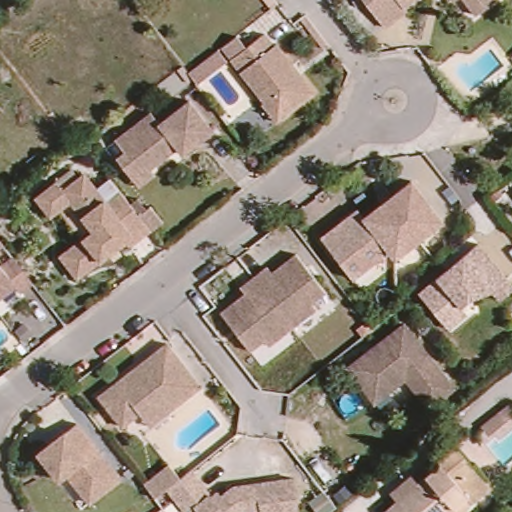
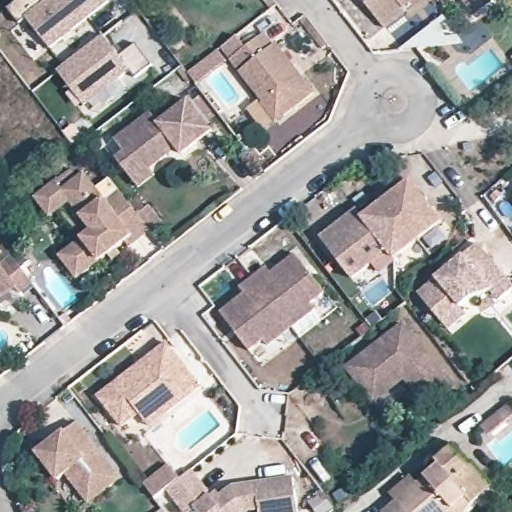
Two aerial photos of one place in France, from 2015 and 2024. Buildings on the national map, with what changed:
new [(22,0),(43,0),(110,0),(111,1),(50,47),(28,18),(20,24),(10,9),(22,0)]
unchanged [(409,6),(387,23),(367,0),(403,0),(409,6)]
unchanged [(482,11),(473,0),(495,0),(482,11)]
new [(440,15),(467,44),(405,46),(440,15)]
unchanged [(262,104),(230,62),(264,33),(313,94),(286,116),(277,123),(262,104)]
new [(105,34),(122,54),(137,43),(153,62),(136,75),(130,68),(87,103),(60,70),(105,34)]
unchanged [(152,185),(144,175),(119,143),(166,109),(173,120),(201,96),(225,129),(196,151),(191,147),(175,160),(168,156),(162,161),(170,173),(152,185)]
unchanged [(74,246),(94,232),(108,223),(75,182),(98,166),(120,195),(133,184),(143,196),(150,189),(156,197),(162,193),(175,209),(161,219),(91,270),(75,281),(55,259),(74,246)]
unchanged [(108,223),(94,232),(68,202),(60,207),(47,190),(69,174),(75,182),(108,223)]
unchanged [(414,174),(447,216),(402,253),(397,246),(369,211),(414,174)]
unchanged [(397,246),(380,258),(347,218),(363,204),(369,211),(397,246)]
unchanged [(380,258),(361,272),(329,233),(347,218),(380,258)]
unchanged [(457,332),(449,323),(425,295),(481,245),(512,282),(512,302),(506,308),(495,294),(480,297),(465,309),(473,319),(457,332)]
unchanged [(272,267),(277,273),(297,256),(329,296),(317,307),(321,312),(296,333),(254,281),(272,267)]
unchanged [(18,257),(37,282),(24,291),(18,286),(6,297),(2,293),(0,294),(0,260),(3,264),(18,257)]
unchanged [(296,333),(273,350),(267,343),(255,353),(225,314),(249,298),(242,291),(254,281),(296,333)]
unchanged [(402,379),(374,403),(350,372),(400,327),(454,388),(435,403),(427,410),(402,379)]
unchanged [(139,415),(125,427),(101,397),(169,345),(204,389),(171,414),(150,430),(139,415)]
unchanged [(490,441),(481,431),(512,404),(512,422),(490,441)]
unchanged [(119,486),(88,510),(64,479),(57,485),(35,457),(72,427),(119,486)]
unchanged [(393,491),(383,478),(395,469),(404,482),(430,459),(425,451),(445,433),(462,455),(467,451),(496,489),(471,510),(469,512),(387,512),(380,502),(393,491)]
unchanged [(286,471),(300,509),(287,512),(260,512),(257,504),(246,512),(198,512),(194,508),(190,512),(186,512),(169,489),(158,498),(147,484),(171,463),(182,478),(192,471),(215,500),(225,490),(286,471)]

